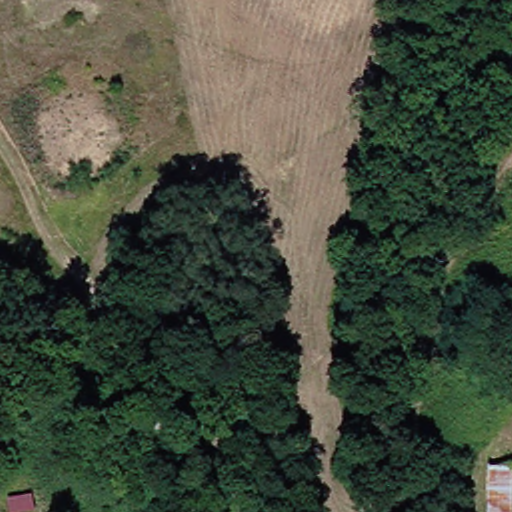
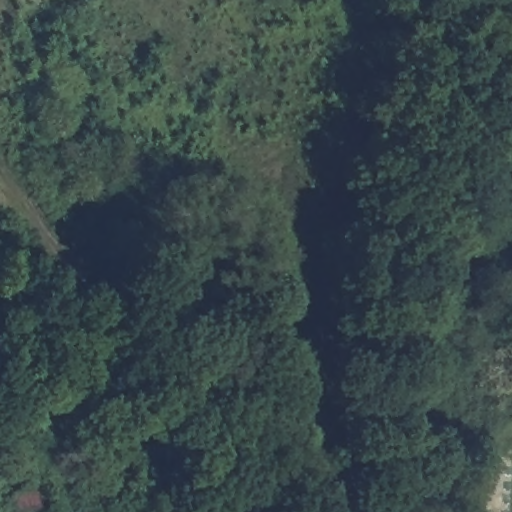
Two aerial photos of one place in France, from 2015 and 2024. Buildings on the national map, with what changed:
unchanged [(502,512),(478,512),(479,467),(502,469),(502,512)]

